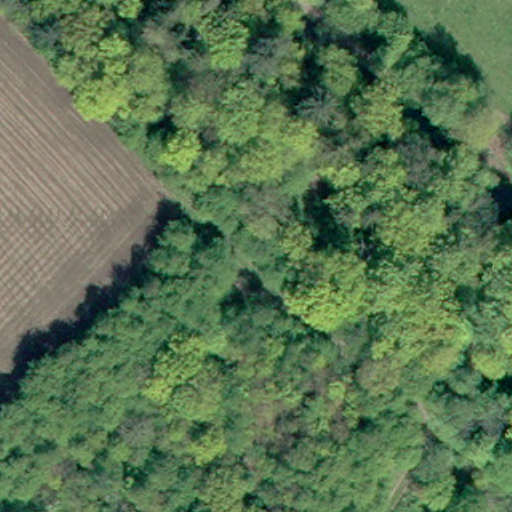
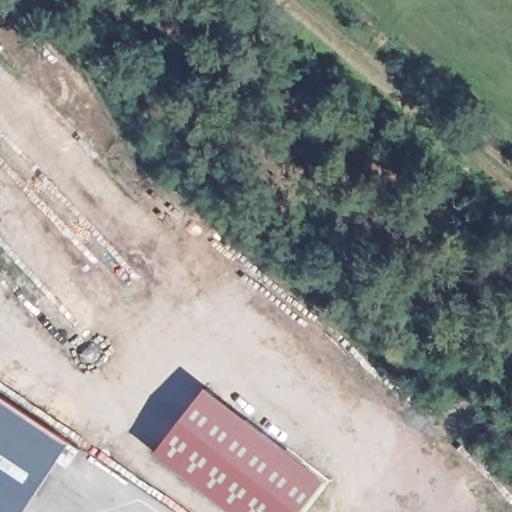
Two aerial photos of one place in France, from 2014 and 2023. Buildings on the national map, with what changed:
new [(205,391),(245,422),(195,486),(155,456),(205,391)]
new [(69,445),(24,512),(0,512),(0,399),(69,445)]
new [(245,422),(325,483),(303,512),(229,512),(195,486),(245,422)]

